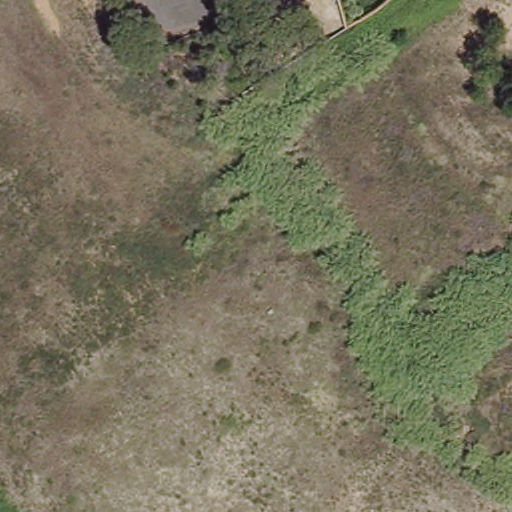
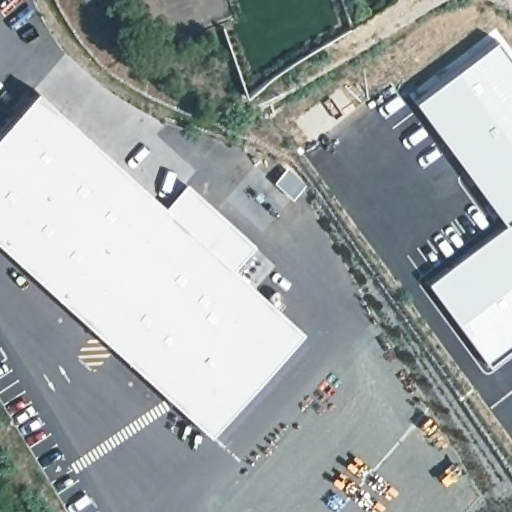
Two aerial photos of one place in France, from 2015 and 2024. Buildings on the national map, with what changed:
new [(512,61),(512,216),(501,223),(411,99),(495,39),(512,61)]
new [(32,88),(85,132),(164,205),(193,232),(234,266),(300,327),(206,433),(78,320),(0,248),(0,124),(32,88)]
new [(185,182),(254,243),(234,266),(193,232),(164,205),(185,182)]
new [(501,223),(512,216),(512,355),(486,373),(423,282),(487,237),(501,223)]

